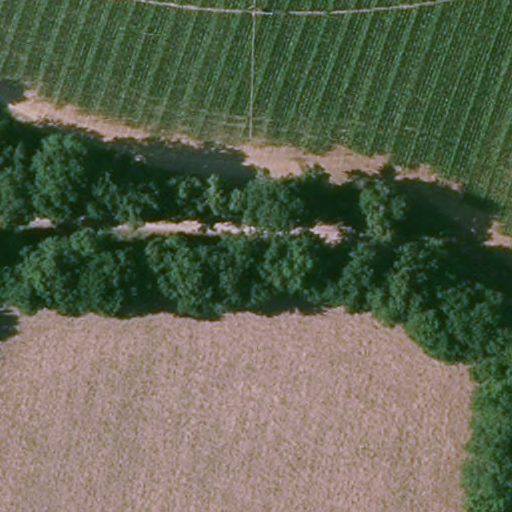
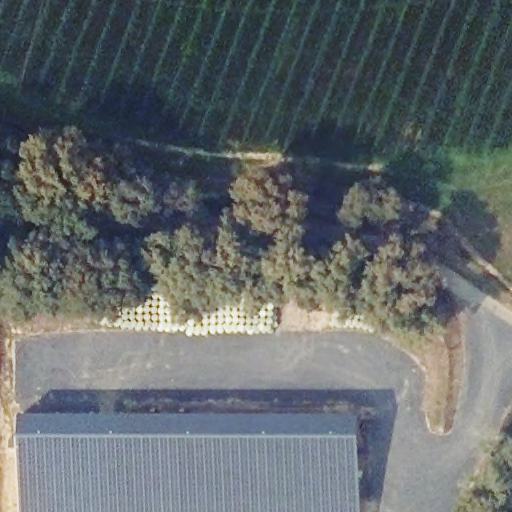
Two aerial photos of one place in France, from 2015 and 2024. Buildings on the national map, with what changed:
new [(22,413),(187,413),(265,414),(265,419),(263,419),(263,431),(160,433),(106,432),(71,430),(21,432),(22,413)]
new [(21,432),(71,430),(106,432),(160,433),(263,431),(266,431),(294,433),(363,432),(363,494),(363,512),(20,512),(21,432)]

